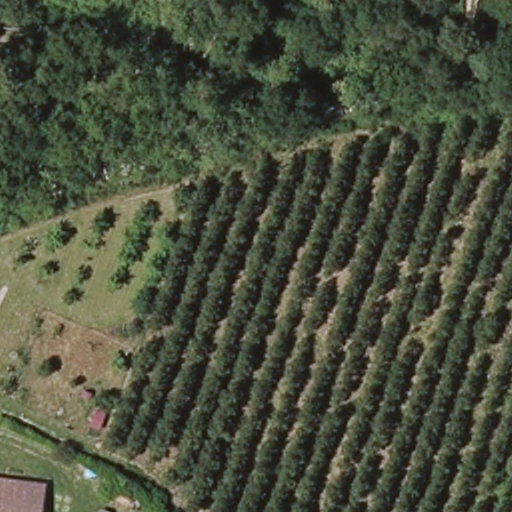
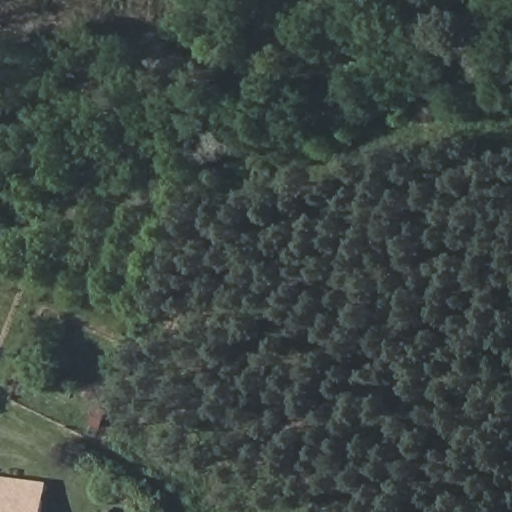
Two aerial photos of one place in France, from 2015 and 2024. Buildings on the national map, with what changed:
unchanged [(51,485),(47,512),(0,512),(0,477),(51,485)]

